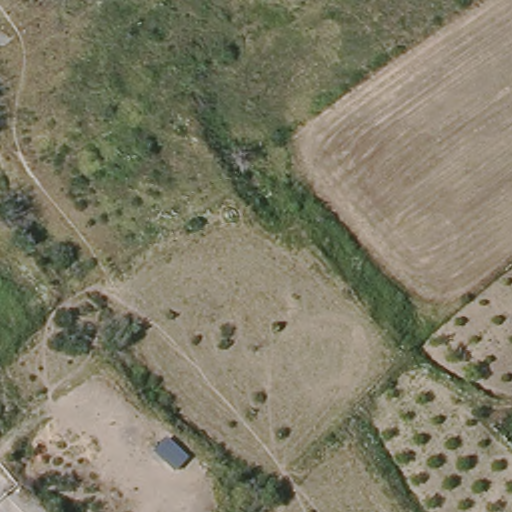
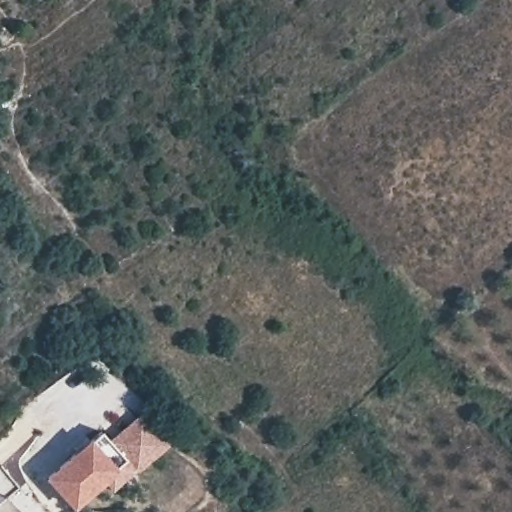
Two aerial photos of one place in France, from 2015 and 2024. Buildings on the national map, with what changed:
new [(105,434),(114,444),(145,419),(167,445),(137,471),(130,463),(78,508),(52,479),(105,434)]
new [(76,448),(88,439),(93,444),(81,454),(76,448)]

